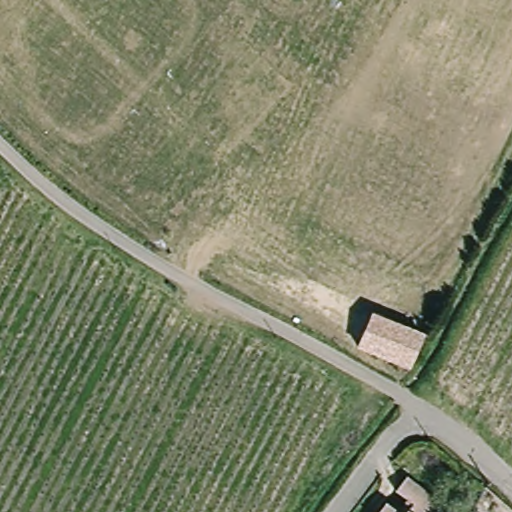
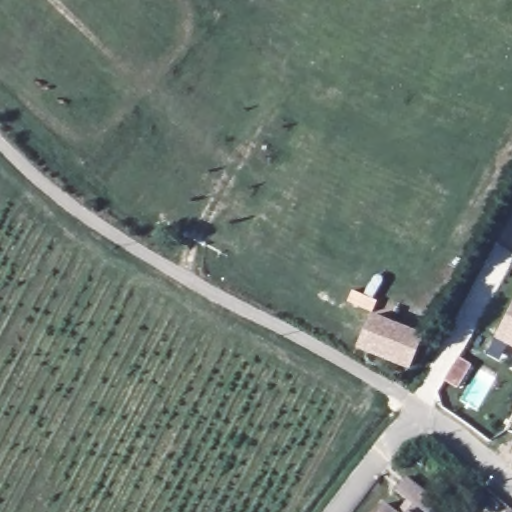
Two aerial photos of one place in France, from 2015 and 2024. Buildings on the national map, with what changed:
new [(512,307),(512,347),(496,338),(512,307)]
unchanged [(414,372),(365,353),(378,317),(427,336),(414,372)]
unchanged [(397,491),(410,475),(441,499),(431,512),(410,512),(415,504),(397,491)]
unchanged [(400,512),(381,512),(388,503),(400,512)]

